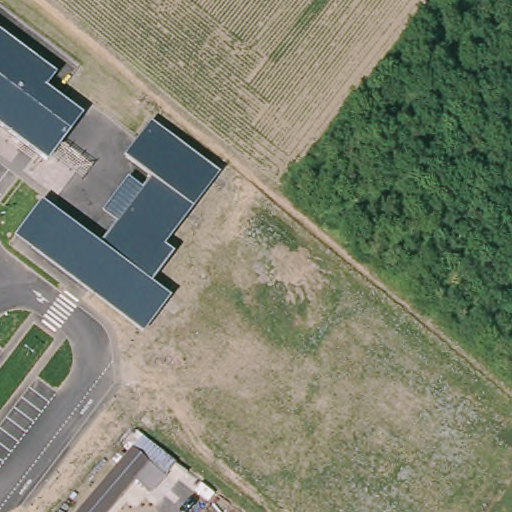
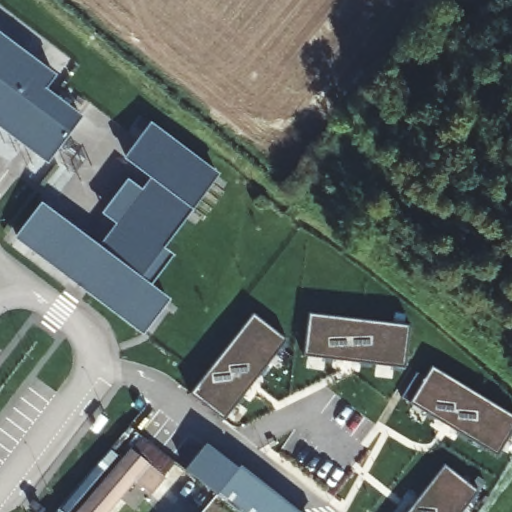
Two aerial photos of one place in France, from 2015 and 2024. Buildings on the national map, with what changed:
unchanged [(44,87),(83,116),(48,162),(0,127),(0,33),(54,74),(44,87)]
unchanged [(98,246),(117,224),(102,212),(128,179),(143,190),(153,178),(123,156),(150,122),(219,173),(193,209),(163,247),(173,253),(150,283),(171,299),(143,335),(13,237),(41,202),(98,246)]
new [(251,319),(286,346),(223,427),(191,400),(251,319)]
new [(408,331),(406,374),(304,362),(309,320),(408,331)]
new [(415,379),(426,385),(431,373),(512,423),(512,438),(497,462),(402,404),(415,379)]
unchanged [(131,436),(163,463),(144,483),(132,473),(98,512),(65,512),(73,502),(131,436)]
new [(239,465),(298,512),(242,512),(218,494),(239,465)]
new [(478,498),(467,512),(412,512),(444,471),(478,498)]

